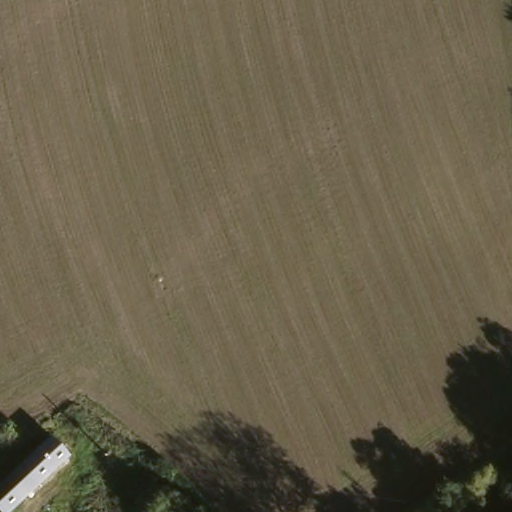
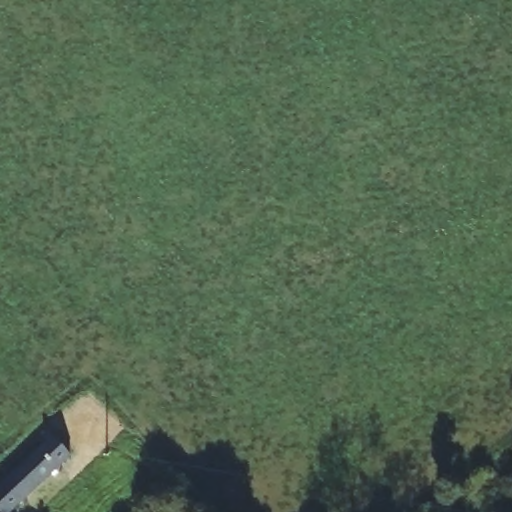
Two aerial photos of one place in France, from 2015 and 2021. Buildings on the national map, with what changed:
unchanged [(73,452),(10,512),(0,502),(0,486),(54,433),(73,452)]

